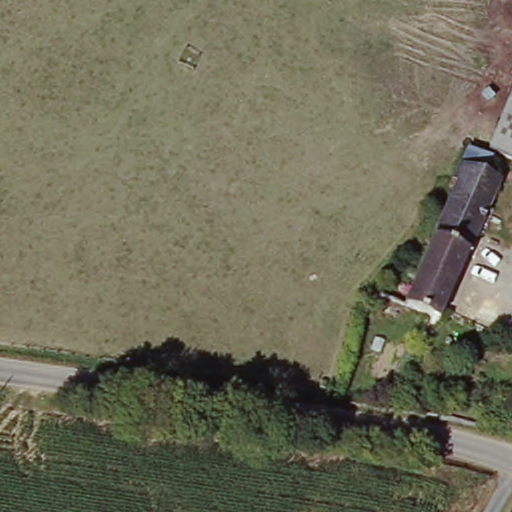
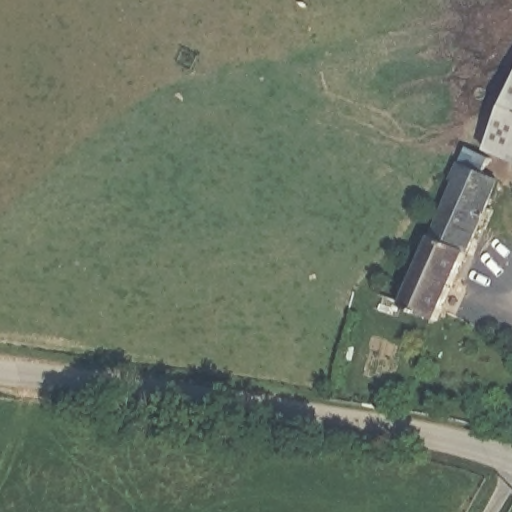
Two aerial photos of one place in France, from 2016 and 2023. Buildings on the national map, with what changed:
unchanged [(490,148),(512,94),(512,157),(490,148)]
unchanged [(440,317),(402,300),(460,171),(453,170),(460,154),(468,139),(487,149),(480,165),(499,176),(450,297),(440,317)]

